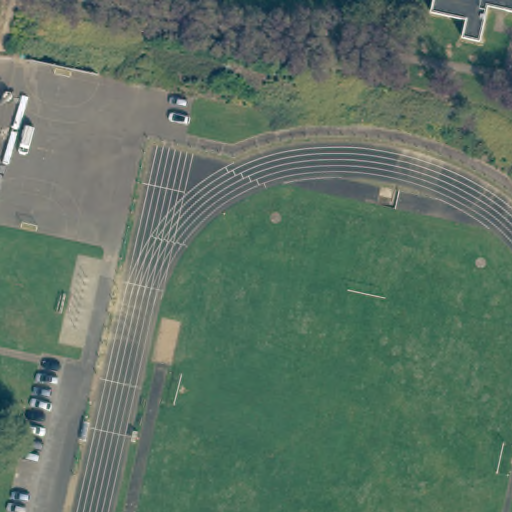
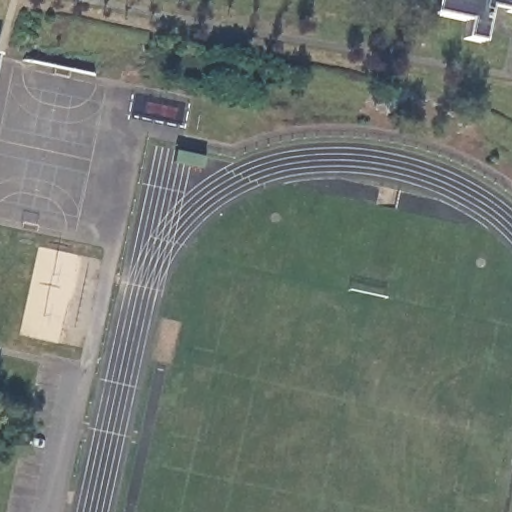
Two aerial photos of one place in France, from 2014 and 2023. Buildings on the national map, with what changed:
unchanged [(429,8),(431,0),(487,0),(477,38),(460,34),(464,17),(429,8)]
unchanged [(512,0),(512,9),(502,7),(503,1),(499,0),(512,0)]

